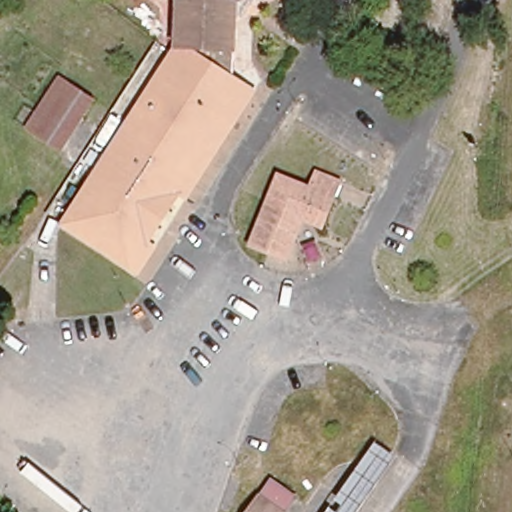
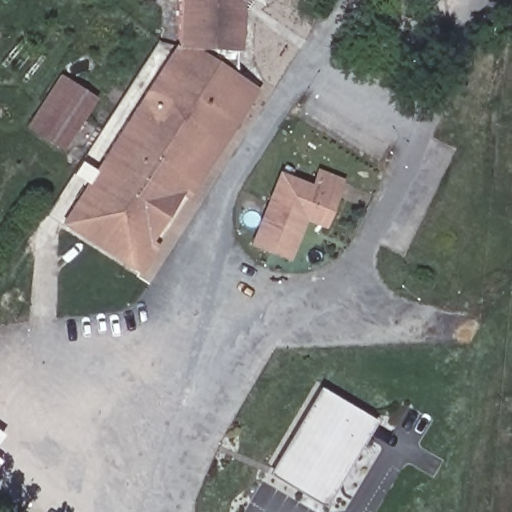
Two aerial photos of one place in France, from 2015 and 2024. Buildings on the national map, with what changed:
unchanged [(59,223),(173,46),(172,0),(250,0),(240,5),(237,81),(259,91),(138,276),(59,223)]
unchanged [(98,101),(66,150),(29,126),(61,77),(98,101)]
unchanged [(267,255),(248,245),(284,176),(310,190),(318,175),(343,188),(321,232),(305,224),(297,239),(285,264),(267,255)]
new [(319,389),(375,422),(325,507),(267,473),(319,389)]
demolished [(293,497),(285,512),(247,512),(265,482),(293,497)]

